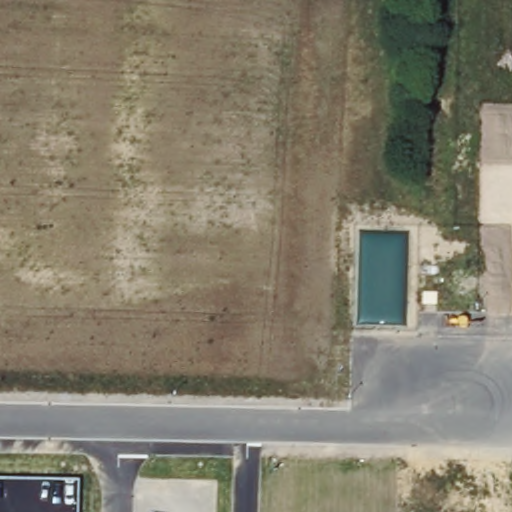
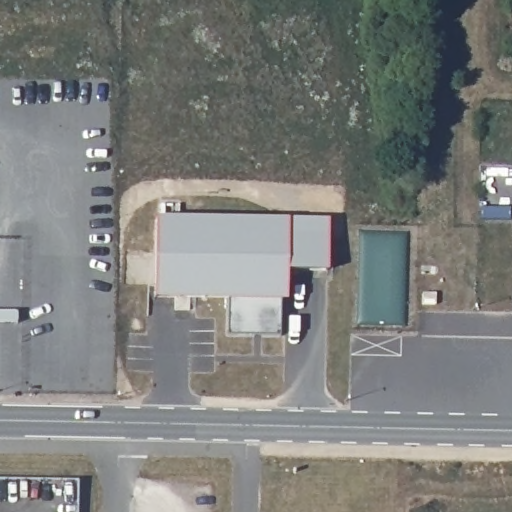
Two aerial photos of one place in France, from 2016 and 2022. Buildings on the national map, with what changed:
new [(126,285),(127,255),(156,255),(157,217),(287,220),(287,236),(327,237),(327,270),(287,270),(286,298),(281,298),(280,336),(227,336),(227,297),(155,297),(156,285),(126,285)]

